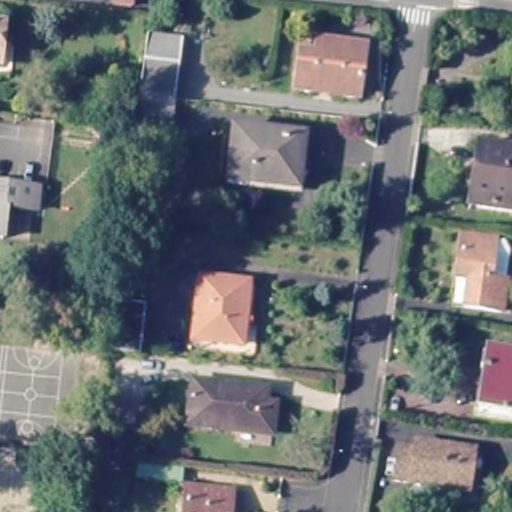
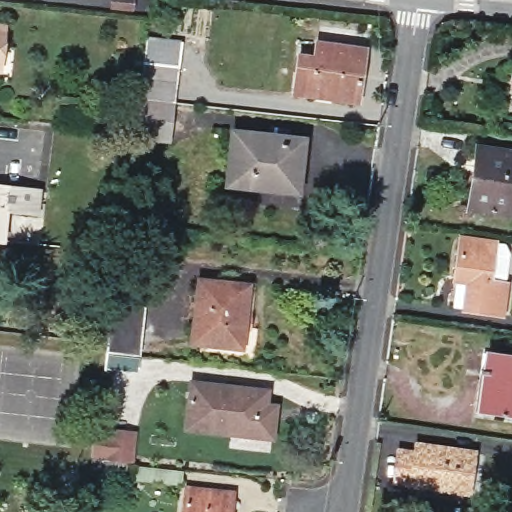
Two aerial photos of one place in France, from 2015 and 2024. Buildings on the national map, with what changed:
unchanged [(110,0),(131,0),(130,8),(109,5),(110,0)]
unchanged [(5,26),(3,41),(0,56),(0,25),(5,26)]
unchanged [(287,97),(293,56),(311,59),(314,41),(361,48),(353,106),(287,97)]
unchanged [(143,132),(130,131),(134,105),(138,75),(142,46),(181,51),(177,80),(173,110),(170,136),(143,132)]
unchanged [(512,90),(512,108),(510,107),(512,90)]
unchanged [(224,181),(230,131),(269,135),(268,144),(300,147),(294,190),(224,181)]
unchanged [(478,147),(512,153),(512,215),(468,207),(478,147)]
unchanged [(33,190),(31,208),(9,205),(4,236),(0,236),(0,185),(33,190)]
unchanged [(497,245),(491,278),(512,281),(506,316),(467,310),(453,307),(464,240),(497,245)]
unchanged [(196,340),(202,281),(248,286),(241,344),(196,340)]
unchanged [(105,356),(112,301),(143,305),(137,360),(105,356)]
unchanged [(480,355),(512,359),(512,417),(481,412),(472,411),(475,389),(480,355)]
unchanged [(202,430),(208,380),(279,389),(273,439),(202,430)]
unchanged [(92,462),(96,432),(128,436),(124,466),(92,462)]
unchanged [(400,451),(418,453),(420,442),(479,451),(473,491),(396,480),(400,451)]
unchanged [(180,473),(179,486),(133,483),(133,469),(180,473)]
unchanged [(192,495),(238,500),(236,512),(190,512),(192,495)]

